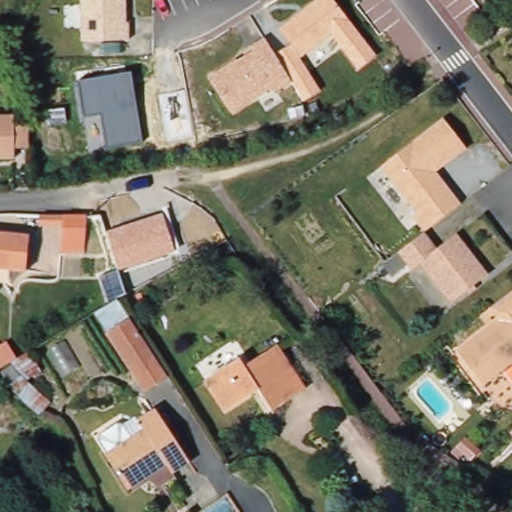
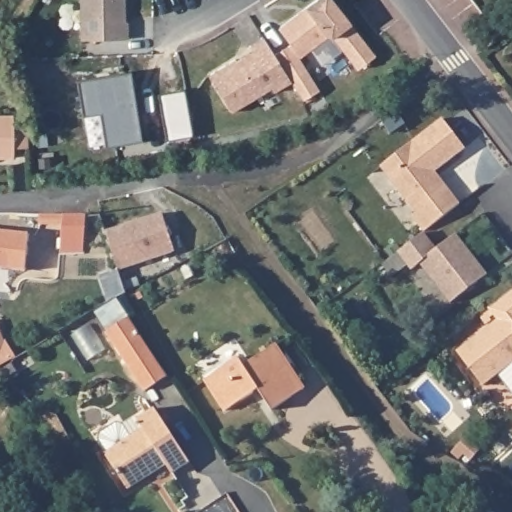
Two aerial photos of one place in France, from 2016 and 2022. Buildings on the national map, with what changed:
unchanged [(125,0),(126,40),(84,41),(83,0),(125,0)]
unchanged [(363,76),(331,37),(299,60),(319,90),(302,101),(288,83),(232,113),(210,77),(251,52),(246,45),(265,36),(274,52),(289,44),(279,29),(317,0),(336,0),(381,60),(363,76)]
unchanged [(132,71),(142,144),(105,149),(100,115),(83,117),(78,80),(132,71)]
new [(184,89),(193,136),(165,141),(157,94),(184,89)]
unchanged [(460,200),(455,204),(425,227),(412,211),(417,208),(392,176),(381,162),(389,156),(443,114),(466,144),(435,167),(448,184),(460,200)]
unchanged [(16,126),(27,126),(31,126),(31,147),(29,147),(16,147),(16,159),(0,159),(0,115),(16,115),(16,126)]
unchanged [(61,250),(62,225),(39,225),(38,215),(64,215),(87,216),(85,253),(61,250)]
unchanged [(107,232),(163,215),(174,250),(118,270),(107,232)]
unchanged [(29,264),(0,261),(0,224),(32,227),(29,264)]
unchanged [(436,245),(456,229),(488,270),(451,298),(420,258),(412,265),(398,247),(405,242),(424,228),(436,245)]
unchanged [(462,346),(503,315),(494,303),(507,293),(512,290),(512,362),(488,380),(462,346)]
unchanged [(129,317),(168,376),(145,391),(106,332),(129,317)]
new [(3,338),(16,359),(0,367),(0,329),(3,338)]
demolished [(20,351),(0,363),(0,364),(0,340),(9,335),(20,351)]
unchanged [(305,390),(272,411),(258,390),(226,411),(205,380),(239,357),(244,365),(275,345),(305,390)]
unchanged [(190,462),(172,473),(166,465),(128,490),(105,454),(107,452),(99,440),(101,434),(117,423),(123,425),(131,437),(143,429),(137,420),(155,408),(190,462)]

